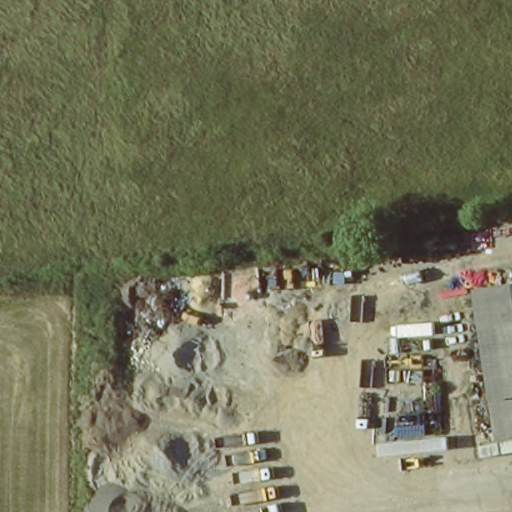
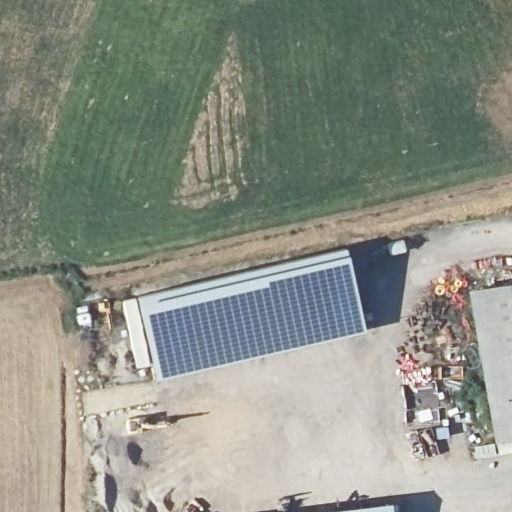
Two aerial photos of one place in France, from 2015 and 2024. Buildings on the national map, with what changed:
new [(353,251),(366,332),(152,381),(136,300),(353,251)]
unchanged [(512,281),(512,439),(494,441),(469,285),(512,281)]
new [(392,512),(310,512),(391,502),(392,512)]

